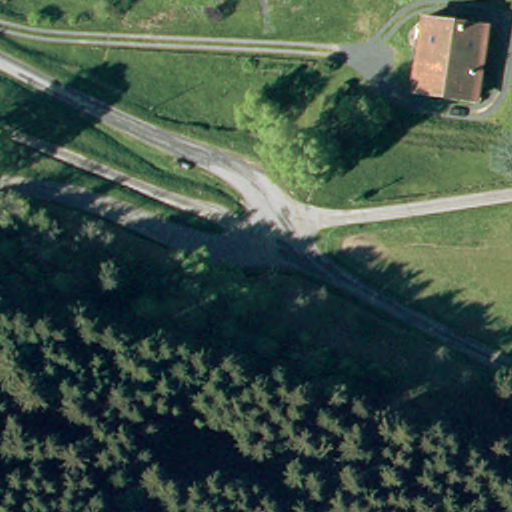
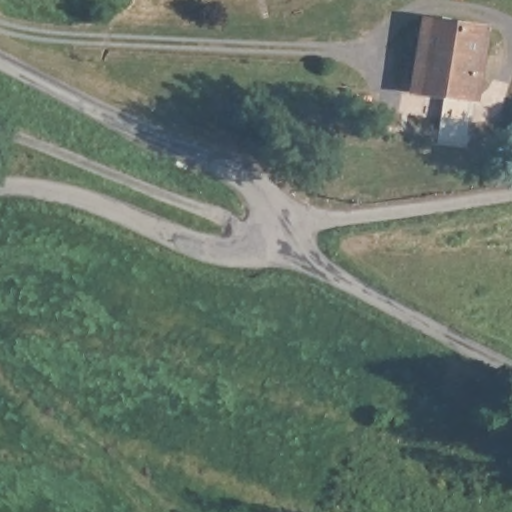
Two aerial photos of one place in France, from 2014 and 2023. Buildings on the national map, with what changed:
unchanged [(417,29),(487,38),(479,102),(409,94),(417,29)]

